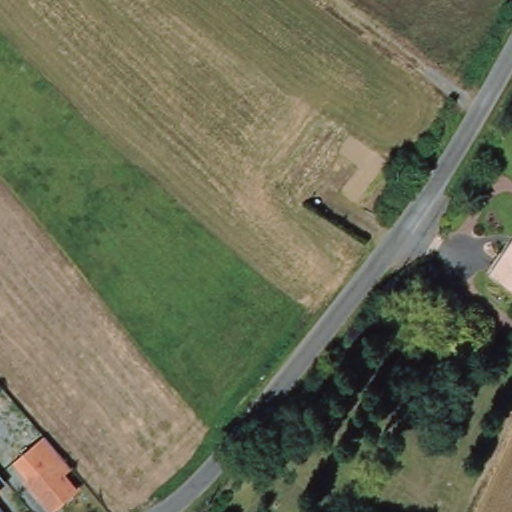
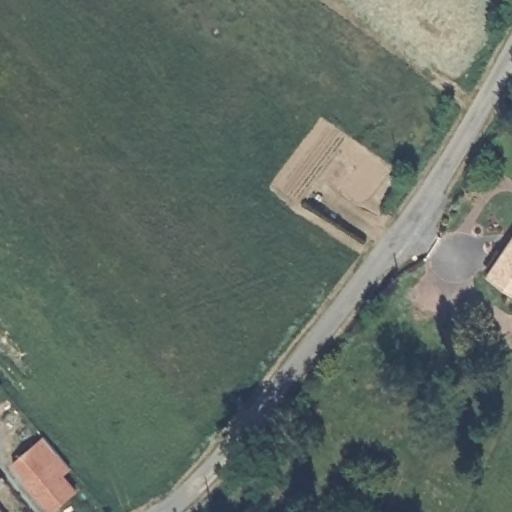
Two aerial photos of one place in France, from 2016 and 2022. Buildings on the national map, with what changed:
unchanged [(512,244),(512,287),(491,273),(512,244)]
unchanged [(78,493),(55,512),(52,512),(27,485),(30,483),(15,467),(46,440),(56,451),(61,456),(71,468),(63,475),(78,493)]
unchanged [(3,494),(0,497),(0,490),(3,494)]

